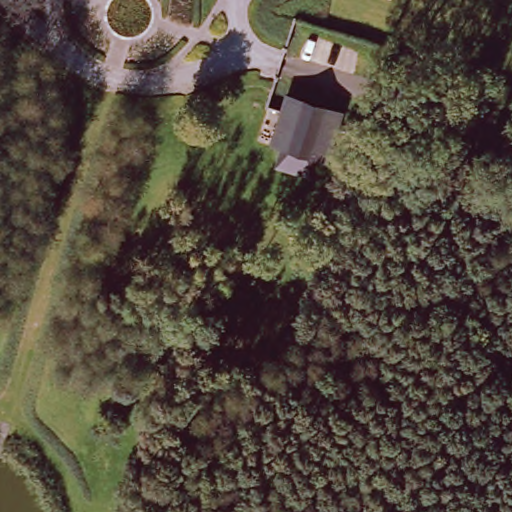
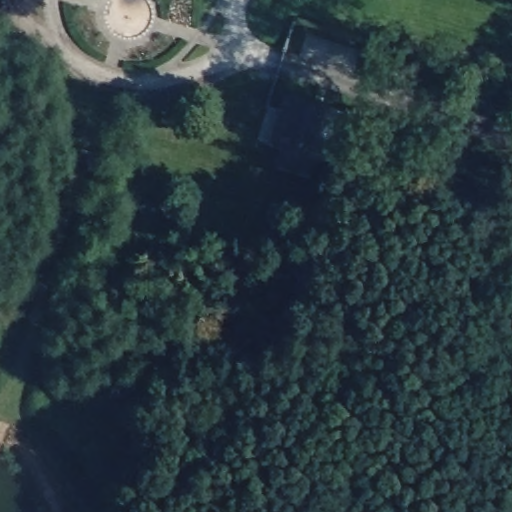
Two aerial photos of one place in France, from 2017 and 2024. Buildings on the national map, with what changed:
unchanged [(336,125),(323,162),(318,160),(311,158),(306,173),(274,162),(280,145),(269,141),(286,94),(318,105),(313,118),(328,123),(336,125)]

